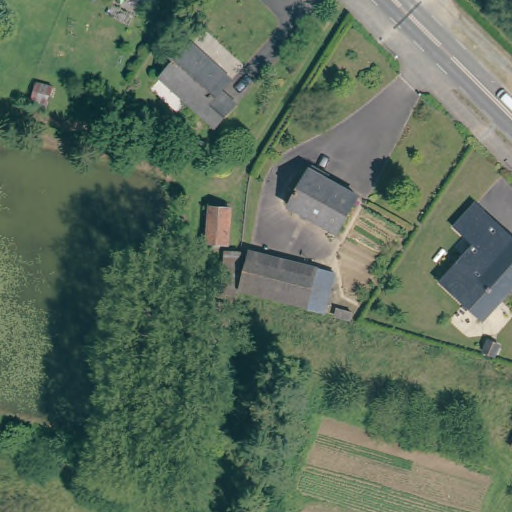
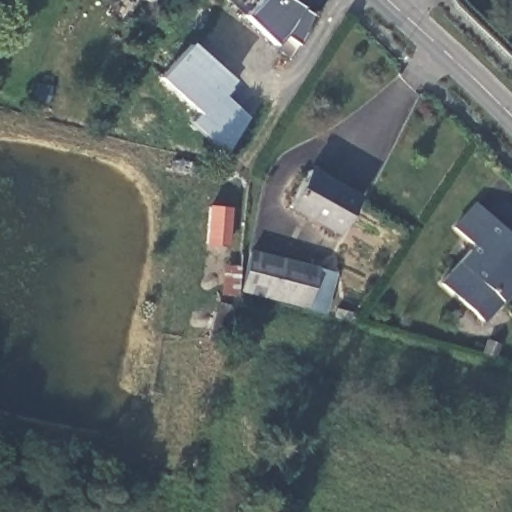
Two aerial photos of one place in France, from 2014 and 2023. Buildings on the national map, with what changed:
new [(295,0),(319,15),(301,44),(285,34),(275,44),(245,14),(259,0),(295,0)]
unchanged [(181,102),(155,77),(186,44),(226,80),(210,97),(214,101),(220,96),(230,105),(209,127),(181,102)]
unchanged [(171,151),(175,136),(199,142),(195,157),(171,151)]
unchanged [(357,197),(337,233),(289,206),(309,170),(357,197)]
unchanged [(439,282),(473,246),(453,227),(476,203),(512,237),(512,288),(480,321),(439,282)]
unchanged [(230,210),(227,245),(207,243),(210,208),(230,210)]
unchanged [(323,312),(306,307),(240,290),(250,252),(316,268),(333,272),(323,312)]
unchanged [(237,292),(222,292),(225,253),(240,254),(237,292)]
unchanged [(217,305),(231,308),(222,342),(208,338),(217,305)]
unchanged [(499,345),(493,357),(481,352),(487,339),(499,345)]
unchanged [(512,454),(511,453),(512,451),(512,454)]

